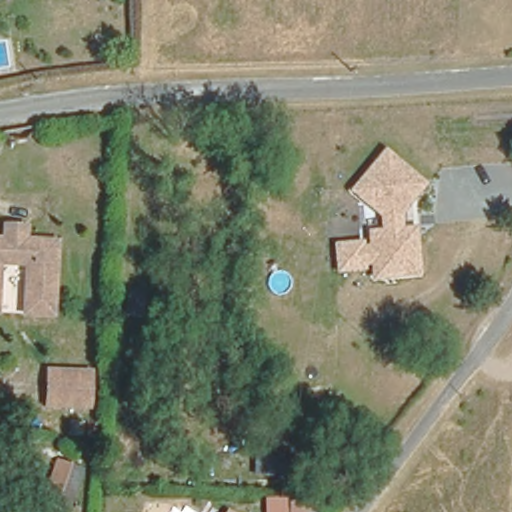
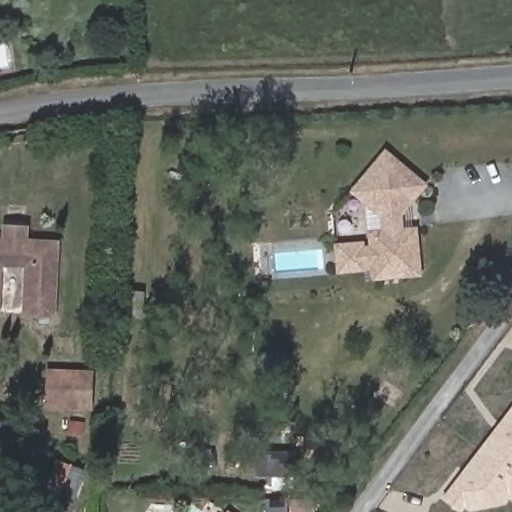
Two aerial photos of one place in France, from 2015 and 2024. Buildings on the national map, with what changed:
unchanged [(407,215),(407,226),(421,227),(427,275),(376,280),(373,270),(339,274),(337,242),(370,242),(368,227),(382,227),(381,217),(351,189),(387,150),(432,182),(407,215)]
unchanged [(52,242),(49,313),(21,313),(23,263),(0,263),(0,240),(52,242)]
unchanged [(160,281),(159,301),(141,301),(141,279),(160,281)]
unchanged [(76,378),(77,406),(55,405),(55,377),(76,378)]
new [(506,504),(468,512),(464,508),(461,512),(459,512),(440,498),(512,405),(512,501),(510,498),(506,504)]
unchanged [(70,512),(68,512),(47,505),(60,465),(83,473),(70,512)]
unchanged [(233,507),(241,512),(214,512),(222,500),(233,507)]

